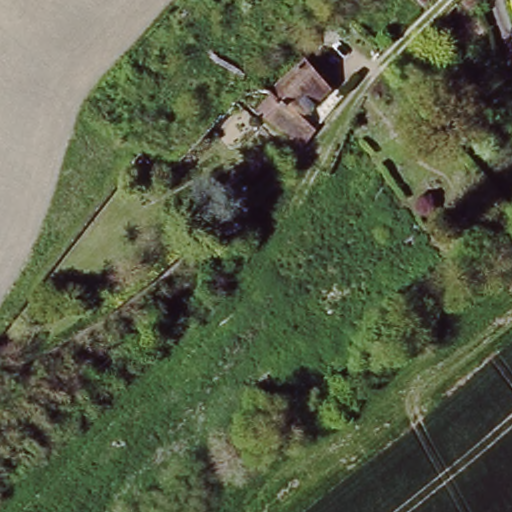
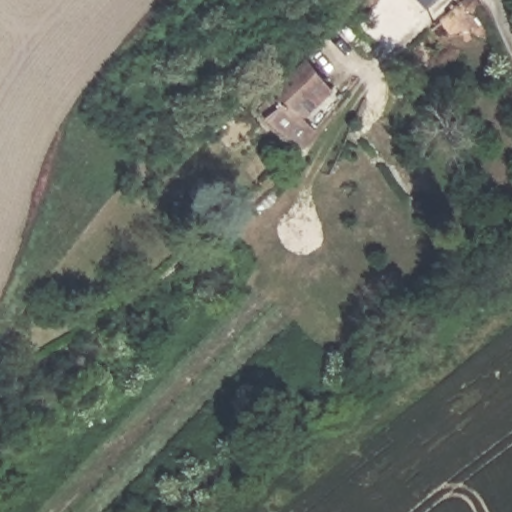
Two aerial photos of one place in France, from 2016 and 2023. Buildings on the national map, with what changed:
unchanged [(427,0),(438,0),(433,5),(427,0)]
unchanged [(467,1),(479,12),(472,19),(460,7),(467,1)]
unchanged [(346,18),(351,23),(342,33),(337,27),(346,18)]
unchanged [(298,150),(280,130),(292,118),(278,106),(308,72),(332,93),(307,121),(317,133),(298,150)]

